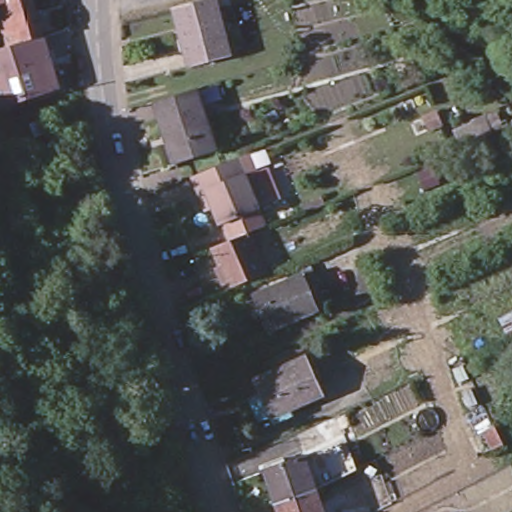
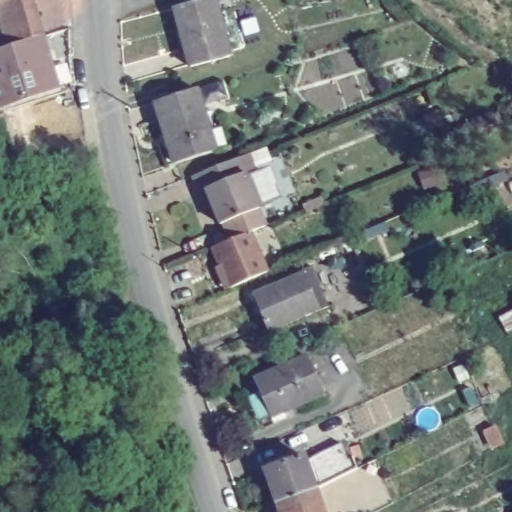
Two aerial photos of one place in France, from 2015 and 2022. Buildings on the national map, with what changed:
unchanged [(0,0),(26,0),(37,37),(4,47),(0,35),(0,0)]
unchanged [(215,0),(229,57),(190,68),(175,8),(205,0),(215,0)]
unchanged [(37,37),(45,60),(0,74),(0,48),(4,47),(37,37)]
unchanged [(54,87),(0,104),(0,74),(45,60),(54,87)]
unchanged [(195,90),(215,151),(175,164),(155,102),(195,90)]
unchanged [(215,225),(209,209),(202,211),(195,194),(187,177),(233,159),(240,177),(260,170),(272,199),(252,206),(254,209),(252,210),(260,226),(245,232),(261,272),(223,288),(206,247),(226,240),(220,223),(215,225)]
unchanged [(305,277),(315,272),(321,287),(312,291),(320,310),(268,332),(252,295),(304,272),(305,277)]
unchanged [(307,357),(325,393),(270,417),(254,381),(307,357)]
unchanged [(265,466),(304,452),(315,486),(277,499),(265,466)]
unchanged [(315,486),(324,512),(282,512),(277,499),(315,486)]

